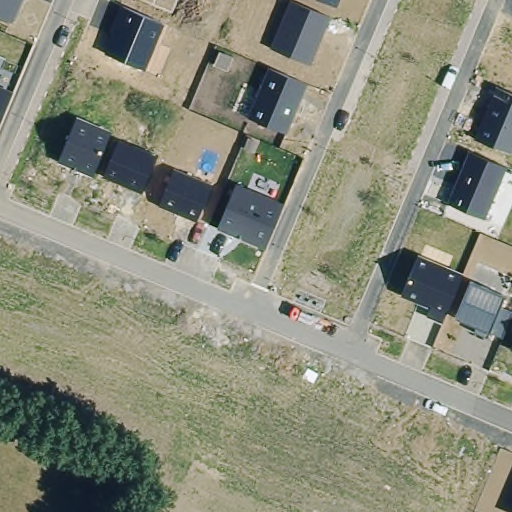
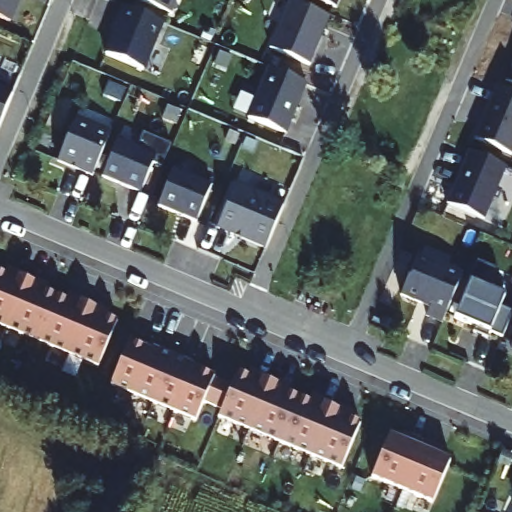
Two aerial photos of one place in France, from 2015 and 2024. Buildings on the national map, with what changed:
unchanged [(23,0),(12,22),(0,17),(0,0),(23,0)]
unchanged [(138,0),(178,0),(171,14),(138,0)]
unchanged [(320,0),(340,0),(337,7),(320,0)]
unchanged [(288,4),(330,20),(311,66),(271,49),(288,4)]
unchanged [(122,9),(163,24),(145,70),(105,53),(122,9)]
new [(512,65),(512,83),(505,80),(512,65)]
unchanged [(268,69),(306,83),(286,134),(247,118),(268,69)]
unchanged [(0,124),(0,87),(13,92),(0,124)]
unchanged [(512,94),(512,152),(511,155),(475,140),(496,89),(512,94)]
unchanged [(76,119),(109,131),(92,177),(59,162),(76,119)]
unchanged [(116,142),(155,156),(141,193),(102,179),(116,142)]
unchanged [(470,154),(505,168),(484,220),(449,203),(470,154)]
unchanged [(174,171),(210,186),(196,221),(159,206),(174,171)]
unchanged [(235,185),(284,204),(266,250),(218,230),(235,185)]
unchanged [(419,256),(462,273),(448,311),(441,323),(425,316),(429,306),(401,295),(419,256)]
new [(4,273),(7,266),(21,271),(20,275),(32,280),(34,276),(50,284),(47,290),(65,298),(68,291),(83,298),(82,300),(95,306),(96,303),(112,311),(111,316),(118,320),(100,367),(0,325),(0,271),(4,273)]
unchanged [(472,283),(505,295),(501,307),(512,312),(503,338),(490,331),(457,318),(472,283)]
new [(216,375),(215,378),(232,385),(239,370),(248,373),(251,368),(293,386),(290,392),(310,401),(312,395),(326,400),(324,403),(336,408),(338,406),(356,415),(353,420),(360,422),(342,468),(217,418),(222,410),(205,403),(196,422),(111,385),(131,340),(216,375)]
unchanged [(512,347),(512,351),(510,350),(512,347)]
new [(450,459),(433,503),(372,479),(390,433),(450,459)]

